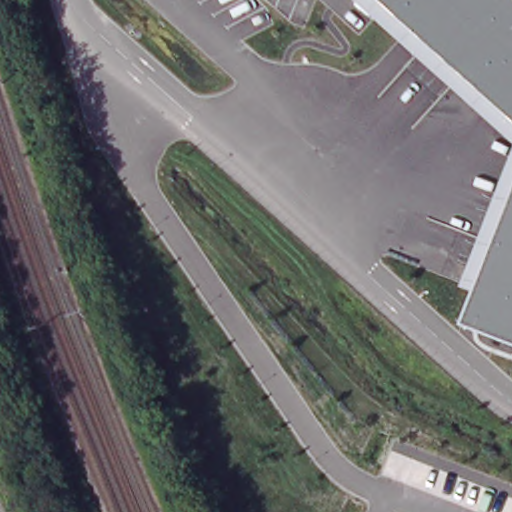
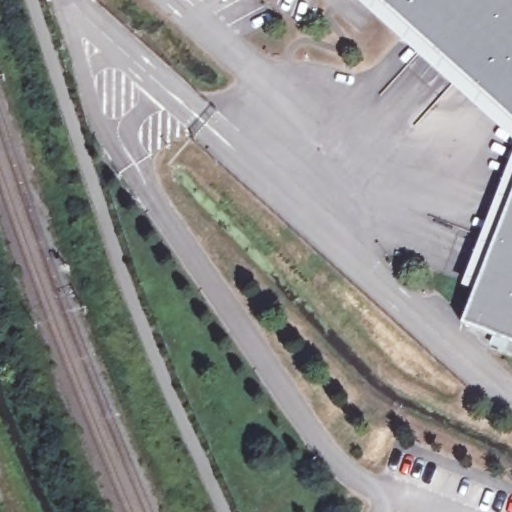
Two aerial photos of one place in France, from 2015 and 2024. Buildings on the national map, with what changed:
unchanged [(512,141),(354,0),(512,0),(512,141)]
unchanged [(475,292),(463,287),(512,156),(512,347),(462,328),(475,292)]

